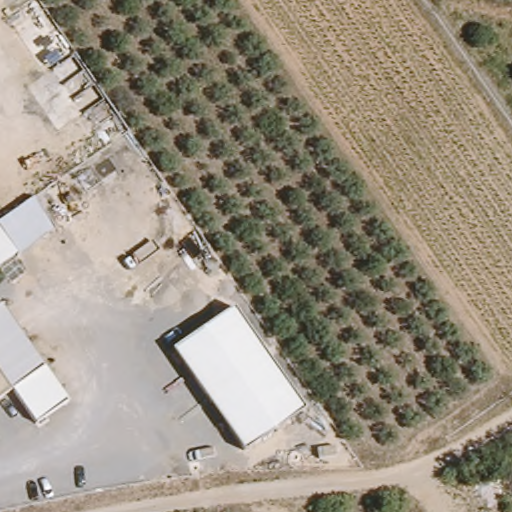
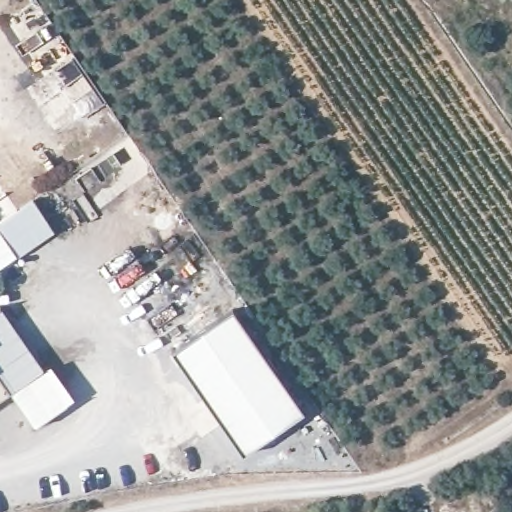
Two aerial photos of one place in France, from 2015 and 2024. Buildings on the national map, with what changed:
unchanged [(52,233),(19,256),(3,267),(0,269),(0,221),(31,201),(52,233)]
unchanged [(46,364),(39,369),(6,393),(0,396),(0,305),(3,303),(46,364)]
unchanged [(301,412),(236,452),(169,354),(231,310),(301,412)]
unchanged [(67,405),(31,429),(6,393),(39,369),(67,405)]

